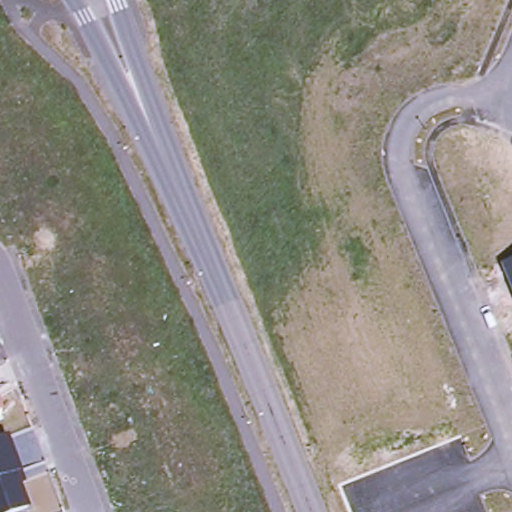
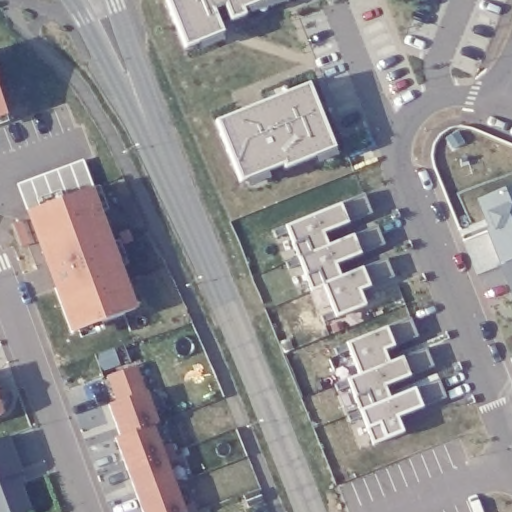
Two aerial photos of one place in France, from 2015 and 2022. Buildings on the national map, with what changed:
new [(172,0),(284,0),(245,16),(247,22),(222,32),(225,40),(188,55),(169,8),(172,0)]
new [(311,92),(337,155),(287,175),(286,171),(243,188),(219,129),(311,92)]
new [(0,122),(0,112),(3,121),(0,122)]
new [(80,167),(91,195),(87,196),(25,219),(15,191),(80,167)]
new [(505,266),(500,268),(486,230),(490,226),(487,215),(484,220),(477,200),(512,186),(512,262),(505,266)]
new [(120,322),(69,340),(25,220),(25,219),(87,196),(122,288),(132,317),(120,322)]
new [(367,201),(375,220),(351,230),(344,211),(367,201)]
new [(343,212),(350,229),(325,240),(330,253),(355,243),(362,261),(337,271),(343,285),(365,276),(372,293),(362,297),(367,312),(340,323),(327,292),(315,297),(290,234),(343,212)]
new [(380,232),(387,251),(363,261),(356,242),(380,232)]
unchanged [(512,262),(512,284),(505,266),(512,262)]
new [(390,265),(397,284),(372,294),(365,275),(390,265)]
new [(414,324),(421,343),(397,353),(390,334),(414,324)]
new [(450,404),(425,414),(399,424),(405,439),(377,450),(352,387),(364,382),(350,351),(389,335),(396,353),(386,357),(392,371),(405,365),(412,382),(387,392),(392,406),(417,396),(417,395),(442,385),(450,404)]
new [(430,354),(437,373),(413,383),(405,364),(430,354)]
new [(155,430),(150,432),(157,454),(167,450),(172,466),(164,470),(180,512),(138,512),(113,445),(117,443),(106,412),(115,409),(105,383),(132,373),(155,430)]
unchanged [(0,417),(0,408),(3,416),(0,417)]
unchanged [(26,485),(22,487),(30,510),(23,512),(0,512),(0,442),(9,439),(22,475),(26,485)]
new [(190,512),(183,512),(189,510),(190,512)]

